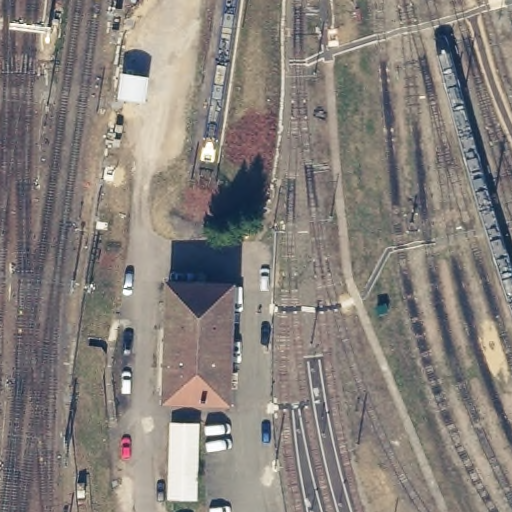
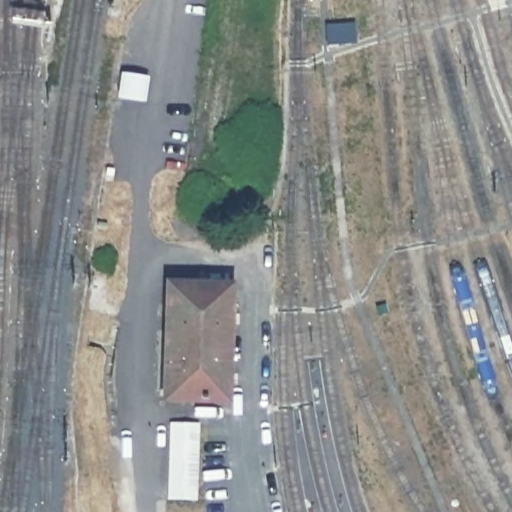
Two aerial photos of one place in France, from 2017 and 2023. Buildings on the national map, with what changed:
unchanged [(234,403),(161,401),(162,308),(162,278),(238,280),(237,312),(234,403)]
unchanged [(195,500),(166,498),(168,422),(198,423),(195,500)]

